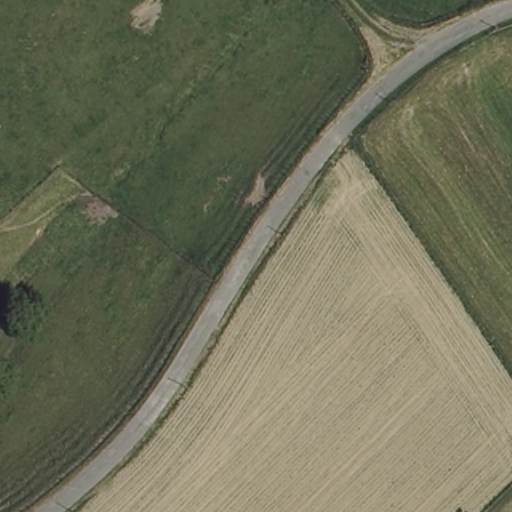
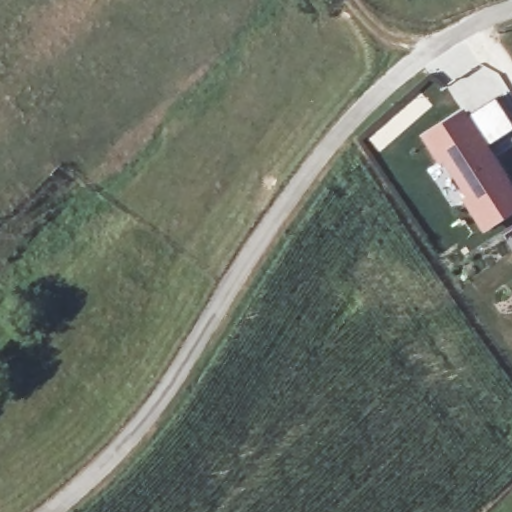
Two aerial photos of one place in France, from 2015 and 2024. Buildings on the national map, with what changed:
new [(463,199),(467,197),(443,162),(439,165),(422,137),(464,109),(466,112),(492,95),(512,125),(512,128),(488,145),(512,183),(512,213),(483,232),(463,199)]

